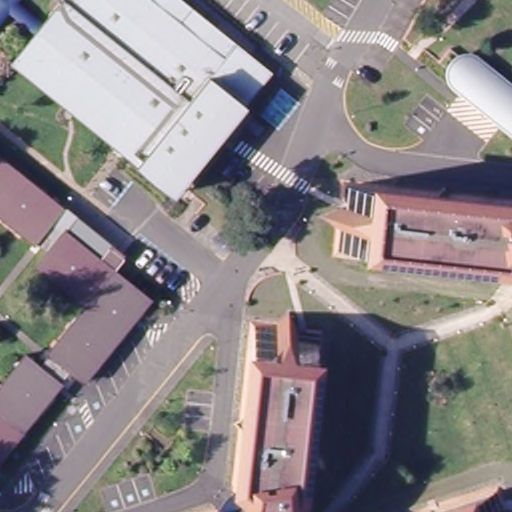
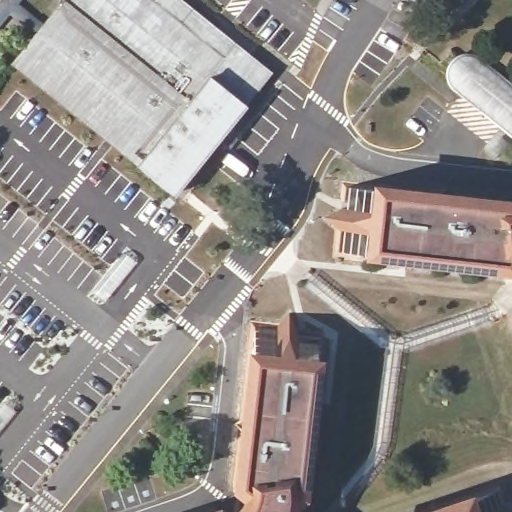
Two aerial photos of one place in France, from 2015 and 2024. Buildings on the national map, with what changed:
unchanged [(36,36),(16,19),(4,10),(0,7),(0,0),(14,0),(24,8),(45,25),(44,27),(36,36)]
unchanged [(14,0),(31,0),(24,8),(14,0)]
unchanged [(148,162),(32,68),(77,13),(64,2),(66,0),(179,0),(221,33),(231,23),(260,47),(251,58),(275,77),(183,190),(175,200),(141,172),(148,162)]
unchanged [(64,2),(77,13),(32,68),(19,58),(36,36),(44,27),(45,25),(64,2)]
unchanged [(0,39),(0,15),(4,10),(16,19),(0,39)]
unchanged [(457,50),(469,49),(512,84),(512,125),(508,125),(447,76),(445,64),(457,50)]
unchanged [(10,61),(0,74),(0,55),(1,54),(10,61)]
unchanged [(291,106),(272,90),(281,80),(300,95),(291,106)]
demolished [(64,207),(51,222),(63,232),(66,229),(102,259),(112,248),(125,259),(116,270),(152,299),(85,383),(71,371),(67,368),(52,354),(89,309),(35,266),(48,251),(36,241),(33,244),(0,217),(0,155),(64,207)]
unchanged [(338,206),(340,185),(511,206),(512,209),(512,264),(511,263),(509,262),(503,271),(332,249),(335,227),(326,216),(338,206)]
unchanged [(51,222),(64,207),(76,216),(66,229),(63,232),(51,222)]
unchanged [(278,324),(290,315),(299,326),(321,329),(303,491),(299,491),(293,495),(292,502),(290,512),(289,512),(229,512),(233,509),(236,505),(239,501),(243,491),(235,484),(257,321),(278,324)]
demolished [(29,357),(44,369),(61,383),(64,386),(0,464),(0,393),(29,357)]
unchanged [(44,369),(54,357),(67,368),(71,371),(61,383),(44,369)]
unchanged [(512,479),(512,512),(419,512),(512,479)]
unchanged [(217,508),(222,512),(208,512),(217,508)]

